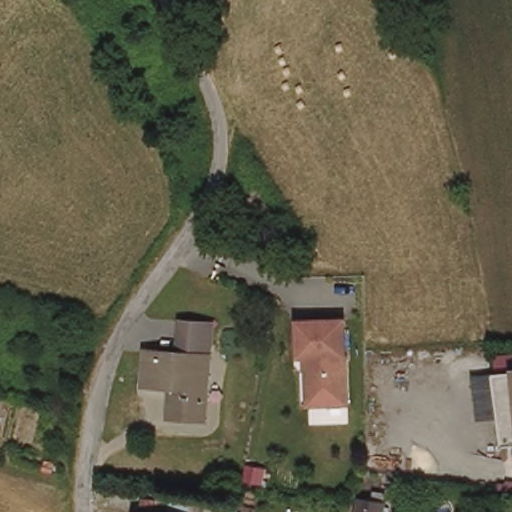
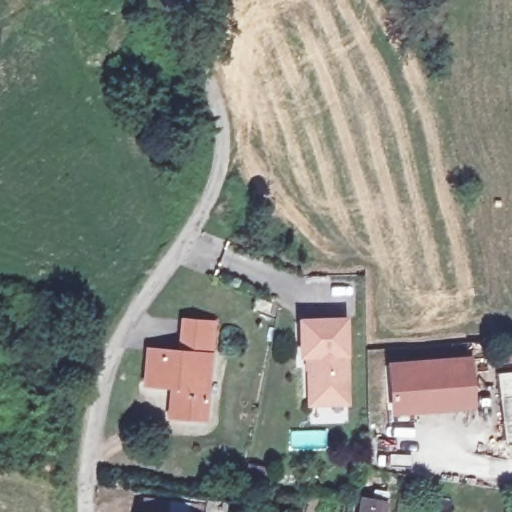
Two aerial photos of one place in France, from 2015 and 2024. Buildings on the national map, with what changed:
unchanged [(309,405),(308,392),(305,355),(300,356),(297,320),(315,320),(342,318),(347,402),(326,404),(310,405),(309,405)]
unchanged [(183,355),(189,328),(219,335),(212,363),(197,426),(162,417),(169,385),(145,379),(152,347),(183,355)]
new [(392,417),(389,361),(474,356),(479,410),(392,417)]
unchanged [(493,370),(512,368),(512,373),(512,446),(502,446),(493,370)]
unchanged [(387,501),(385,512),(358,512),(360,497),(387,501)]
unchanged [(133,510),(143,512),(133,512),(133,510)]

